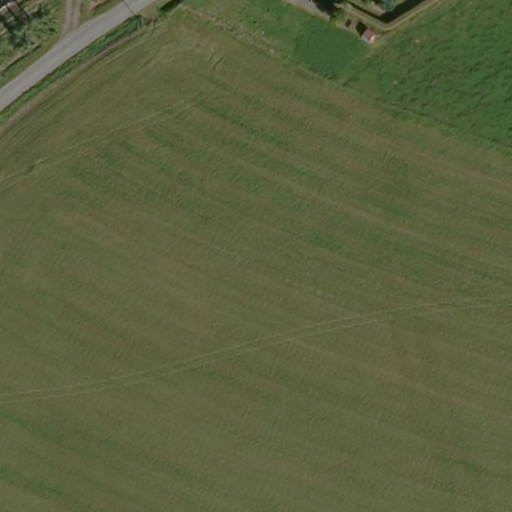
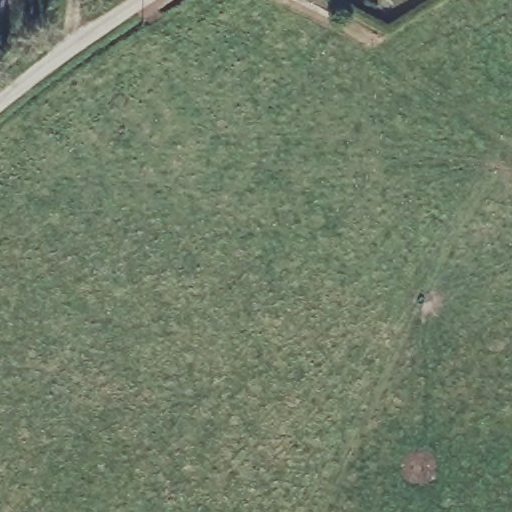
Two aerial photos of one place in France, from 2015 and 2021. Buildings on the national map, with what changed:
unchanged [(0,16),(0,0),(21,0),(0,16)]

